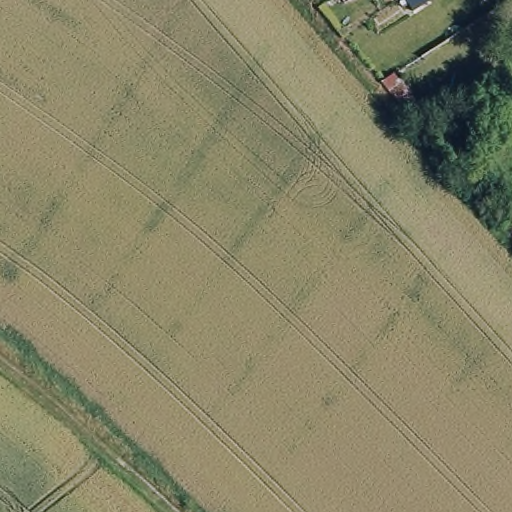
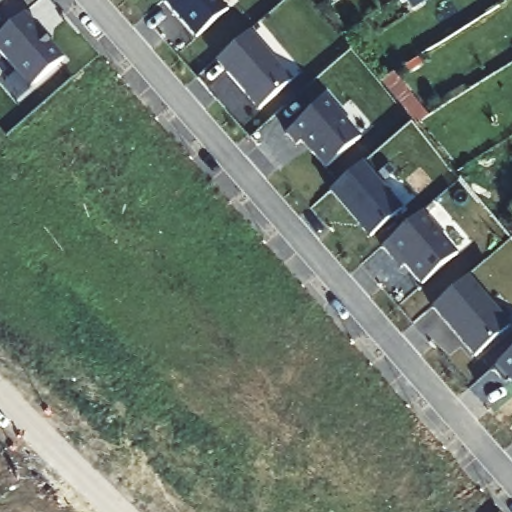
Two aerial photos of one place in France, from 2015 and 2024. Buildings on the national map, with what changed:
new [(1,0),(0,1),(0,0),(1,0)]
new [(218,0),(226,10),(195,37),(162,0),(218,0)]
new [(21,12),(40,35),(39,35),(46,43),(47,42),(61,58),(29,86),(0,53),(0,32),(21,12)]
new [(258,109),(214,60),(247,31),(290,80),(258,109)]
unchanged [(415,125),(381,81),(392,74),(427,117),(415,125)]
new [(324,98),(359,137),(325,167),(301,140),(296,145),(285,132),(324,98)]
new [(360,163),(400,210),(369,236),(329,190),(360,163)]
new [(381,245),(421,211),(456,253),(421,283),(396,255),(392,257),(381,245)]
new [(392,257),(396,255),(404,264),(400,267),(392,257)]
new [(431,306),(466,276),(508,325),(474,356),(431,306)]
new [(512,381),(509,378),(504,382),(491,367),(512,349),(512,381)]

